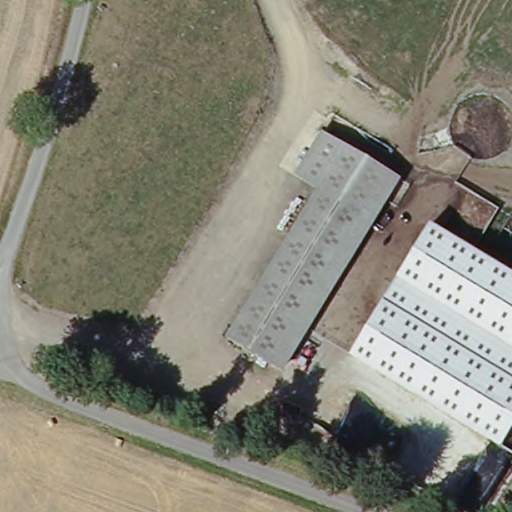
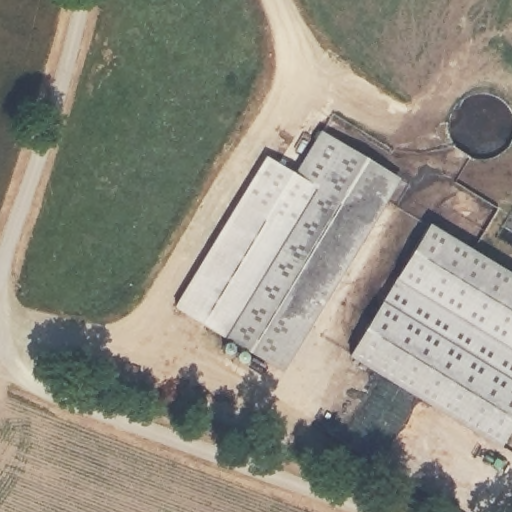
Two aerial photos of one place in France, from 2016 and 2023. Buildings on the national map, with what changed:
unchanged [(313,194),(290,181),(318,136),(397,185),(278,379),(221,344),(313,194)]
new [(295,172),(290,181),(313,194),(224,339),(175,309),(268,156),(295,172)]
unchanged [(512,430),(501,449),(350,356),(431,224),(512,274),(512,430)]

